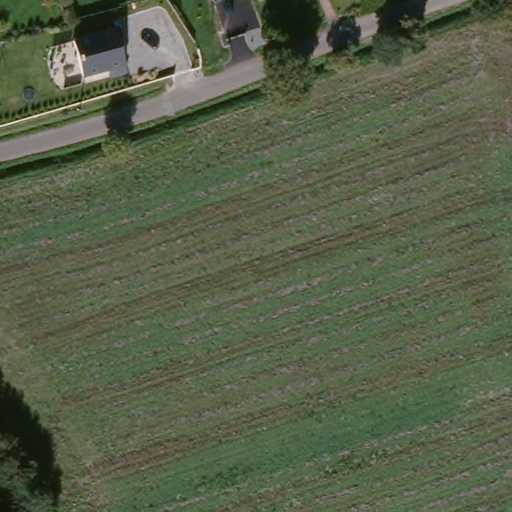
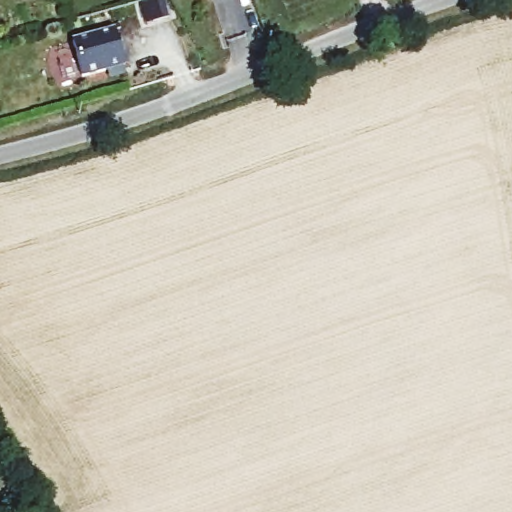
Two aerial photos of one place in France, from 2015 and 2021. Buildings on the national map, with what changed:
unchanged [(122,67),(82,77),(72,40),(114,28),(122,67)]

